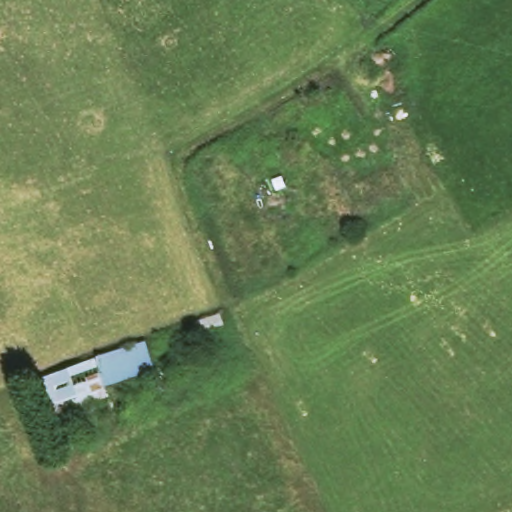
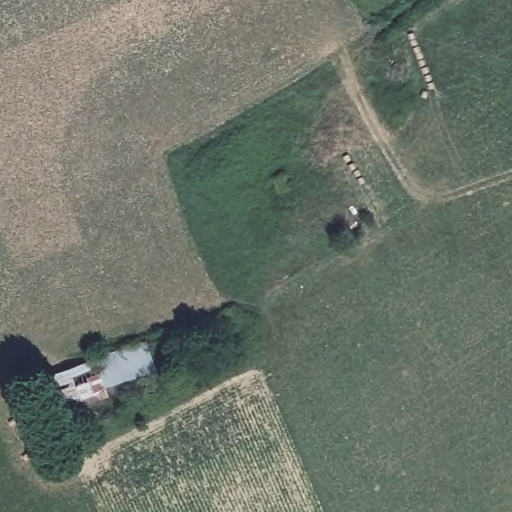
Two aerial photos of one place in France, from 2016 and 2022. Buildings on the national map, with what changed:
unchanged [(95,357),(145,342),(155,371),(105,387),(95,357)]

